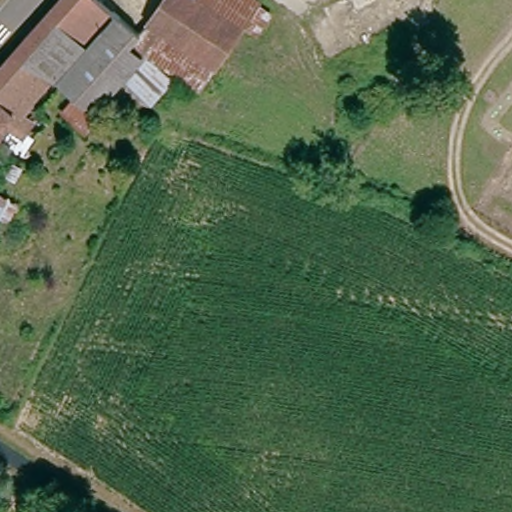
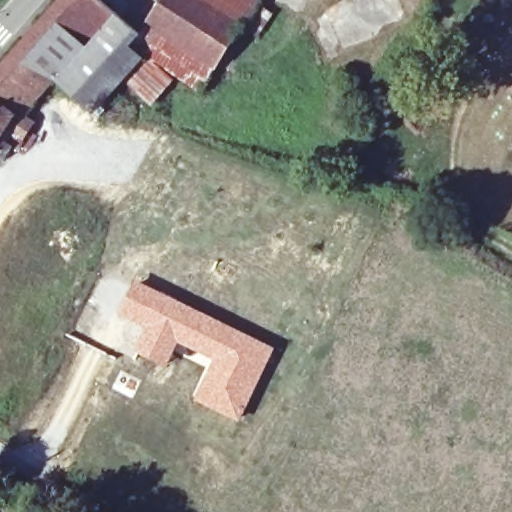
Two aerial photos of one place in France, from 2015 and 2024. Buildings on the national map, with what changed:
unchanged [(0,84),(0,69),(60,0),(94,0),(111,17),(57,83),(32,114),(0,84)]
unchanged [(149,30),(167,0),(189,0),(204,10),(236,31),(214,68),(149,30)]
unchanged [(189,0),(209,0),(204,10),(189,0)]
unchanged [(243,19),(236,31),(204,10),(209,0),(249,0),(253,3),(243,19)]
unchanged [(57,83),(111,17),(140,45),(135,53),(145,58),(142,61),(115,90),(104,101),(93,113),(85,106),(57,83)]
unchanged [(145,58),(135,53),(140,45),(145,36),(211,72),(201,89),(145,58)]
unchanged [(144,112),(115,90),(142,61),(169,86),(144,112)]
unchanged [(35,126),(22,140),(11,130),(5,138),(16,147),(4,159),(0,155),(0,84),(32,114),(28,120),(35,126)]
new [(136,279),(277,348),(240,423),(195,401),(213,361),(179,344),(167,368),(134,352),(144,329),(117,316),(136,279)]

